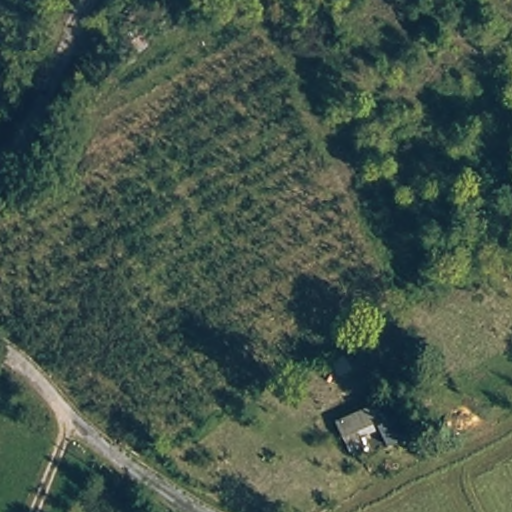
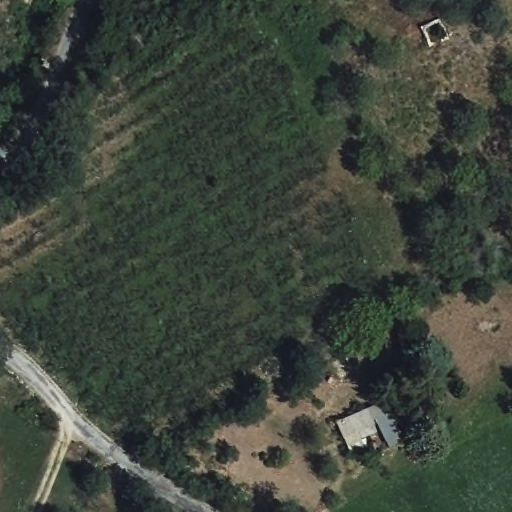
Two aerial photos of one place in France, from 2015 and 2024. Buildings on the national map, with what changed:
unchanged [(387,426),(346,442),(337,421),(380,405),(387,426)]

